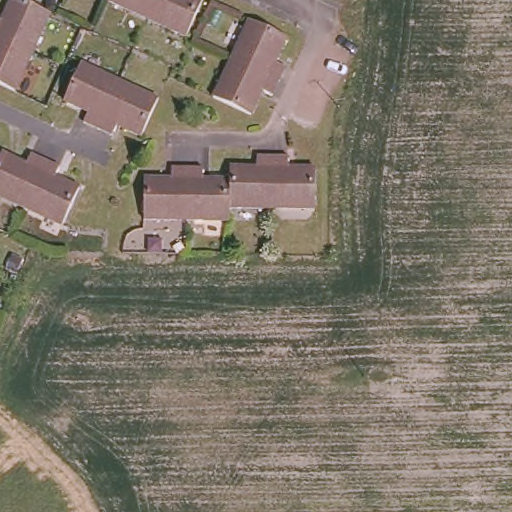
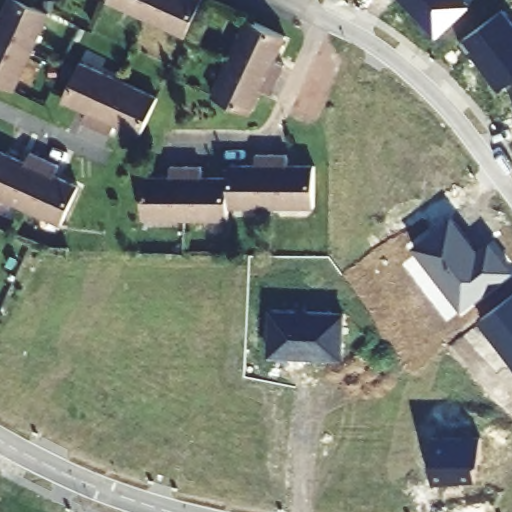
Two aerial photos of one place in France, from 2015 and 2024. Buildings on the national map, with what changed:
unchanged [(0,21),(10,0),(22,0),(49,13),(31,51),(0,37),(0,20),(0,21)]
unchanged [(107,5),(109,0),(155,0),(145,23),(107,5)]
unchanged [(184,41),(145,23),(155,0),(193,0),(200,4),(184,41)]
new [(439,36),(406,0),(469,0),(472,4),(439,36)]
new [(512,79),(501,87),(465,38),(505,7),(512,16),(512,79)]
unchanged [(247,19),(283,36),(273,60),(282,65),(276,78),(230,56),(247,19)]
unchanged [(14,89),(0,83),(0,37),(31,51),(14,89)]
unchanged [(269,93),(260,89),(248,113),(211,96),(230,56),(276,78),(269,93)]
unchanged [(81,115),(85,105),(62,94),(78,58),(116,76),(95,121),(81,115)]
unchanged [(155,94),(139,131),(114,119),(110,128),(95,121),(116,76),(155,94)]
unchanged [(0,201),(0,158),(23,168),(28,159),(41,165),(20,210),(0,201)]
unchanged [(231,211),(231,183),(232,170),(260,171),(260,160),(274,160),(272,212),(231,211)]
unchanged [(290,160),(291,171),(318,172),(317,212),(272,212),(274,160),(290,160)]
unchanged [(20,210),(41,165),(56,171),(52,181),(77,192),(60,228),(20,210)]
unchanged [(146,224),(147,183),(175,183),(175,172),(190,172),(188,224),(146,224)]
unchanged [(230,225),(188,224),(190,172),(205,172),(206,183),(231,183),(231,211),(230,225)]
new [(493,237),(512,265),(512,272),(465,308),(415,244),(455,213),(480,249),(493,237)]
new [(512,295),(512,358),(480,319),(512,295)]
new [(344,357),(270,356),(272,304),(348,309),(344,357)]
new [(482,464),(475,465),(477,482),(433,481),(432,433),(485,432),(482,464)]

